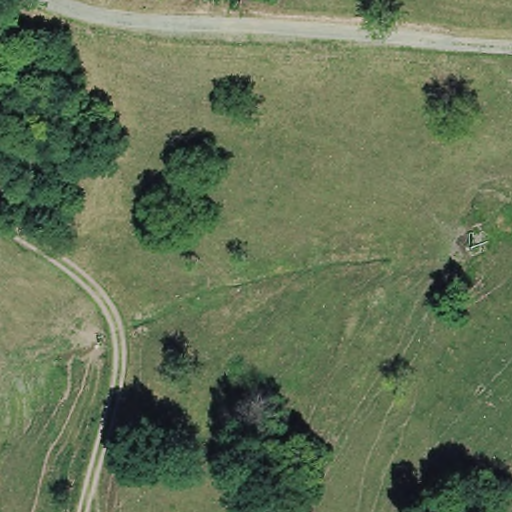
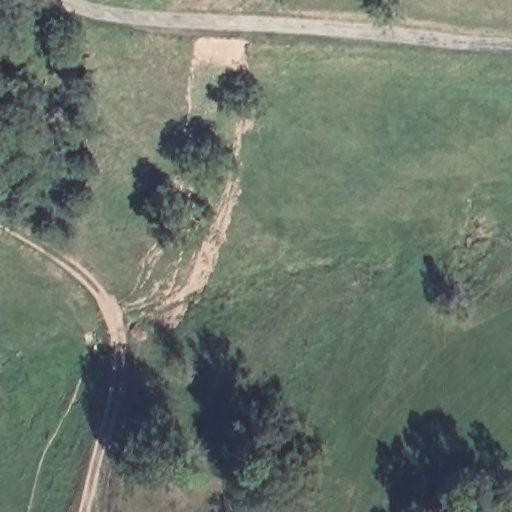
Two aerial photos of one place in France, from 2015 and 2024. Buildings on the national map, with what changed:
[]

